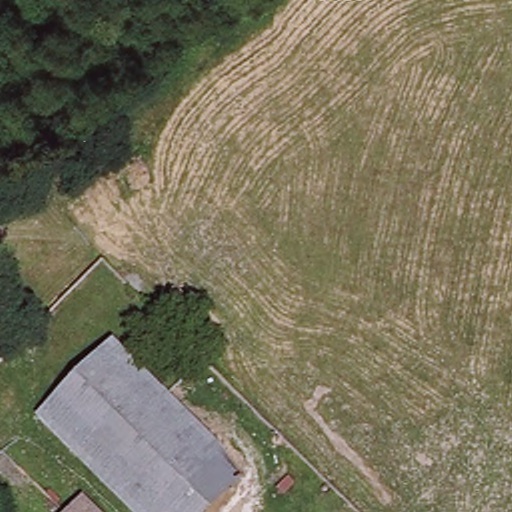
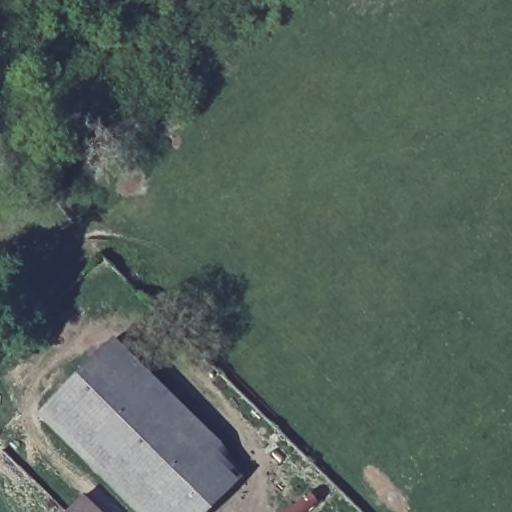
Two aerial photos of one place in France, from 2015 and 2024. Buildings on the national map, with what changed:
unchanged [(207,512),(134,512),(40,422),(118,342),(249,468),(207,512)]
unchanged [(97,512),(65,512),(81,497),(97,512)]

